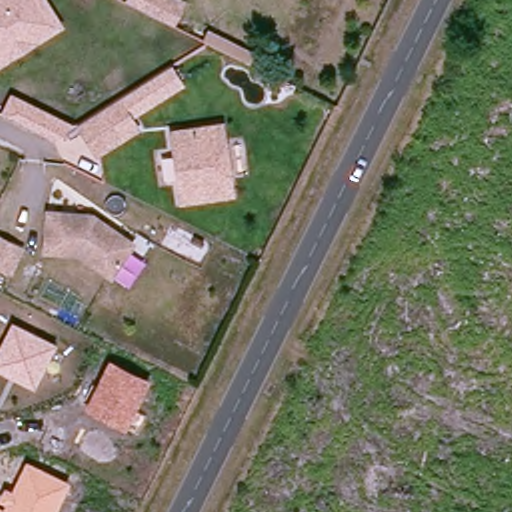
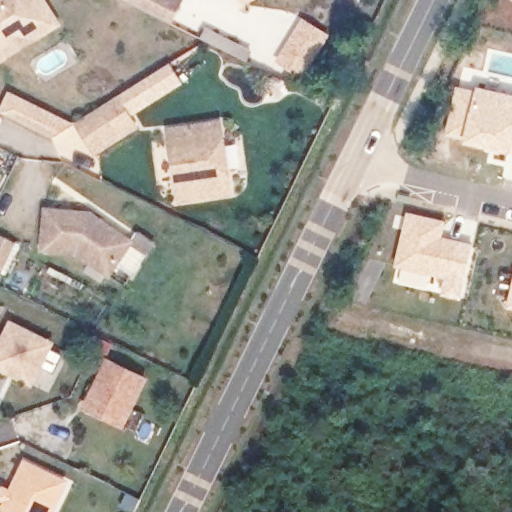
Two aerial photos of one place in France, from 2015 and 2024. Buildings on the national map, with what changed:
unchanged [(58,25),(40,35),(32,22),(0,42),(0,0),(43,0),(58,25)]
unchanged [(180,1),(168,23),(126,0),(178,0),(180,1)]
new [(510,0),(512,0),(512,1),(510,0)]
unchanged [(40,35),(0,59),(0,42),(32,22),(40,35)]
unchanged [(235,59),(221,51),(195,37),(190,36),(195,26),(225,42),(239,50),(235,59)]
unchanged [(143,86),(174,67),(175,70),(184,86),(154,104),(131,117),(139,129),(98,152),(81,122),(143,86)]
new [(455,85),(474,89),(460,141),(442,135),(455,85)]
new [(475,85),(512,94),(512,154),(510,154),(460,141),(474,89),(475,85)]
unchanged [(74,125),(53,140),(1,112),(9,95),(74,125)]
unchanged [(195,130),(226,129),(227,147),(230,200),(179,201),(178,177),(185,177),(184,155),(177,155),(176,131),(195,130)]
unchanged [(46,206),(90,210),(130,238),(109,270),(76,248),(43,245),(46,206)]
new [(404,211),(446,220),(442,236),(473,243),(461,299),(435,293),(436,284),(424,282),(425,277),(392,268),(404,211)]
unchanged [(0,270),(0,235),(16,242),(5,272),(0,270)]
new [(512,276),(512,309),(504,307),(512,276)]
unchanged [(34,391),(0,373),(0,344),(11,323),(58,345),(34,391)]
unchanged [(151,379),(124,431),(84,409),(107,360),(151,379)]
unchanged [(55,512),(0,512),(0,508),(1,509),(5,505),(0,502),(0,494),(3,487),(10,491),(26,461),(70,483),(55,512)]

